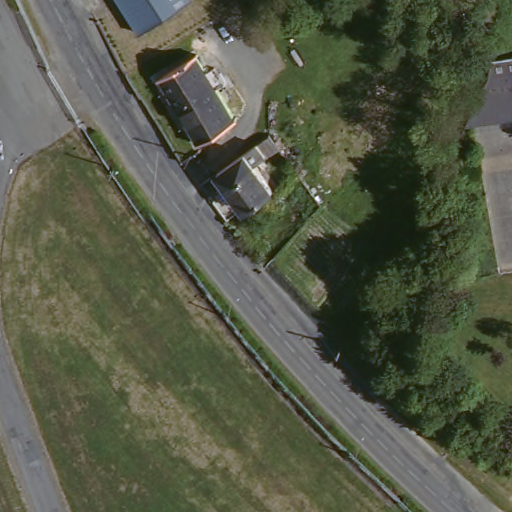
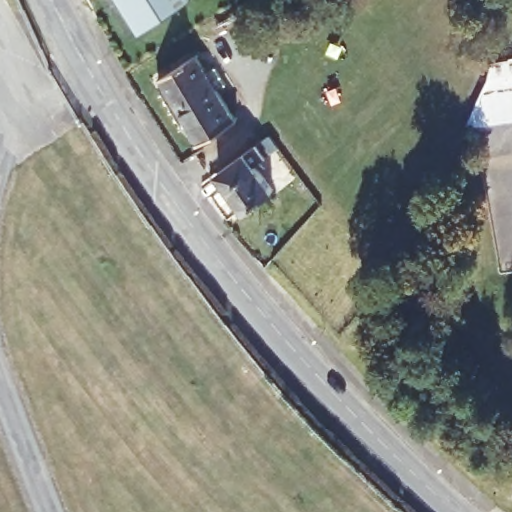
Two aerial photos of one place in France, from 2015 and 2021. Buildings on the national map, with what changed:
unchanged [(143,35),(121,0),(186,0),(190,5),(143,35)]
unchanged [(235,123),(205,143),(165,77),(195,58),(235,123)]
unchanged [(512,115),(455,122),(481,77),(484,64),(512,60),(512,115)]
unchanged [(251,159),(258,171),(249,178),(264,199),(241,217),(217,185),(251,159)]

